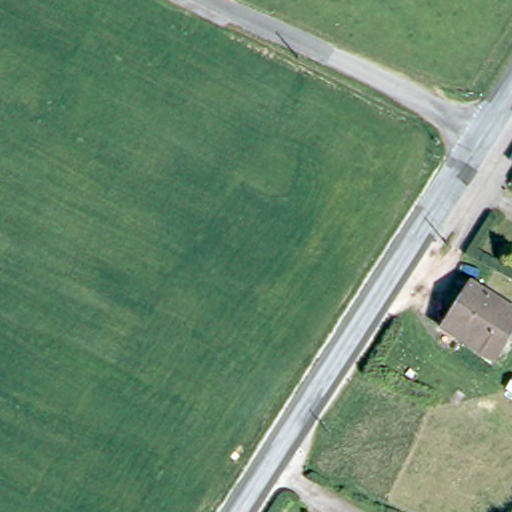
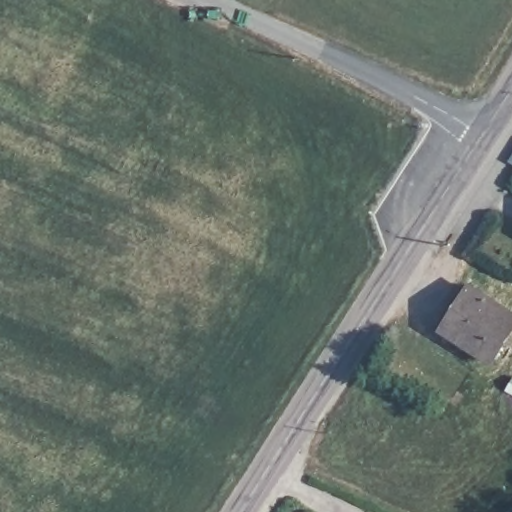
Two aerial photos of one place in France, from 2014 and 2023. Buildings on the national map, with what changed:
unchanged [(440,330),(468,288),(512,317),(512,328),(489,362),(440,330)]

